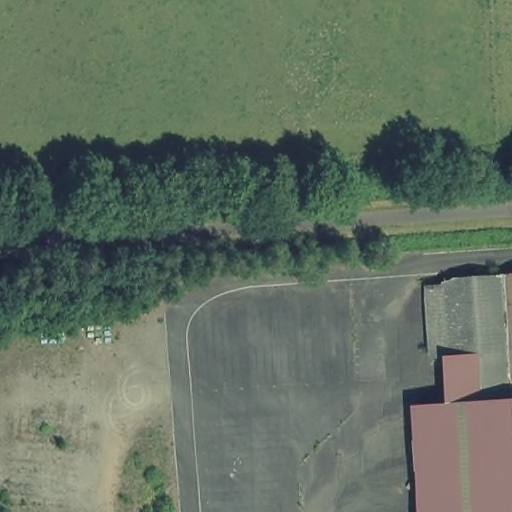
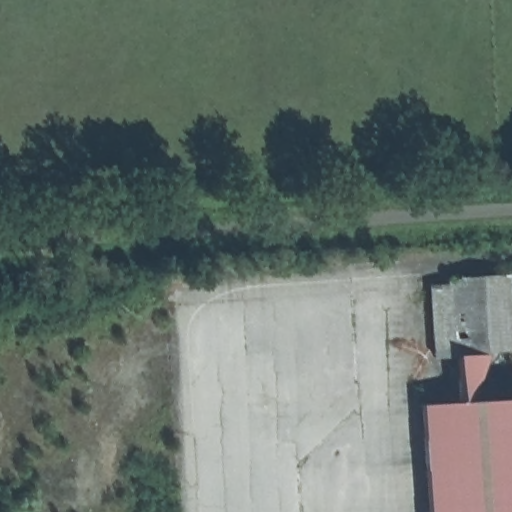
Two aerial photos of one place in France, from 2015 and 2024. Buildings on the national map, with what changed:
unchanged [(453,355),(435,356),(430,285),(448,284),(448,281),(512,277),(512,512),(423,512),(416,407),(456,405),(453,355)]

